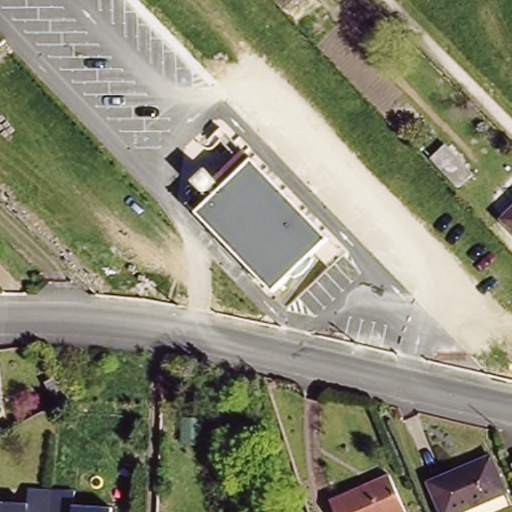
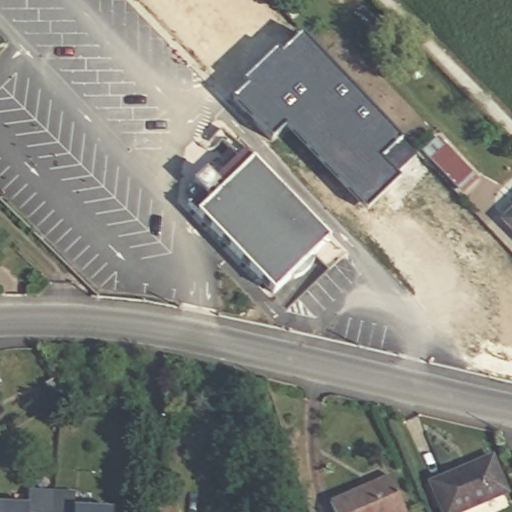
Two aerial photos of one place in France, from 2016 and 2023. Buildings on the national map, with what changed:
new [(288,124),(271,140),(233,100),(300,35),(415,155),(365,203),(288,124)]
unchanged [(472,178),(457,191),(430,163),(445,149),(472,178)]
unchanged [(325,238),(269,290),(185,202),(243,151),(325,238)]
unchanged [(512,212),(512,224),(506,218),(512,212)]
unchanged [(56,402),(43,380),(57,372),(70,394),(62,399),(56,402)]
new [(180,418),(200,419),(200,434),(199,444),(179,443),(180,433),(180,418)]
unchanged [(461,512),(445,512),(431,480),(491,453),(508,491),(461,512)]
unchanged [(397,512),(339,512),(332,495),(393,469),(407,507),(397,512)]
unchanged [(55,494),(55,498),(53,498),(53,512),(0,512),(0,505),(32,506),(32,490),(53,491),(53,494),(55,494)]
unchanged [(77,507),(115,509),(115,512),(53,512),(53,498),(55,498),(55,494),(53,494),(53,491),(77,491),(77,507)]

